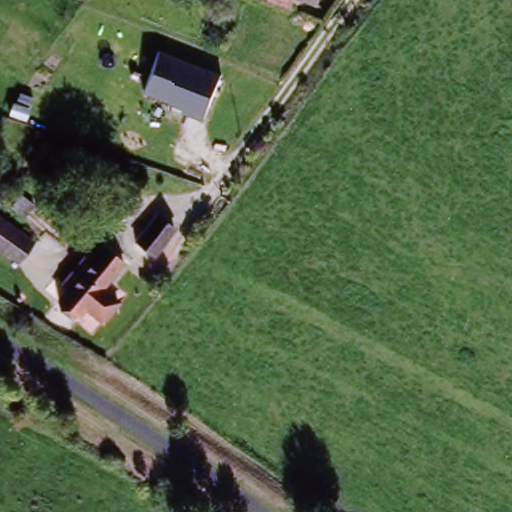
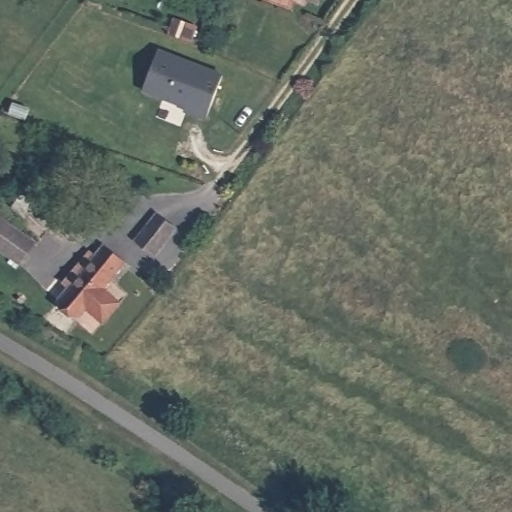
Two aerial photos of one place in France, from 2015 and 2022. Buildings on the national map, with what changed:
unchanged [(307,0),(324,0),(322,5),(307,0)]
unchanged [(206,119),(184,111),(185,108),(142,92),(158,49),(222,74),(206,119)]
unchanged [(0,219),(32,247),(15,264),(0,251),(0,219)]
unchanged [(155,259),(140,245),(157,227),(173,240),(155,259)]
unchanged [(60,303),(102,252),(124,270),(82,320),(60,303)]
unchanged [(107,290),(121,302),(103,325),(89,313),(107,290)]

